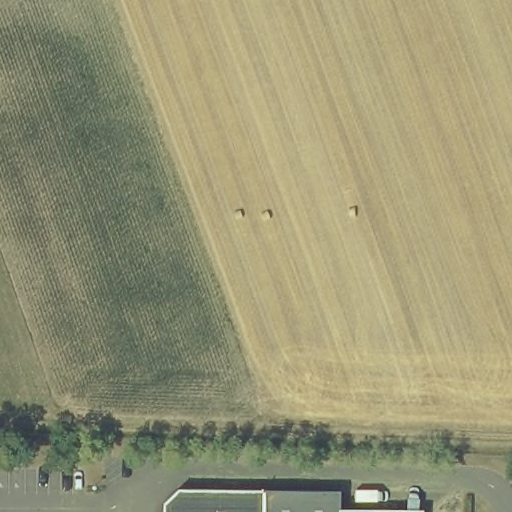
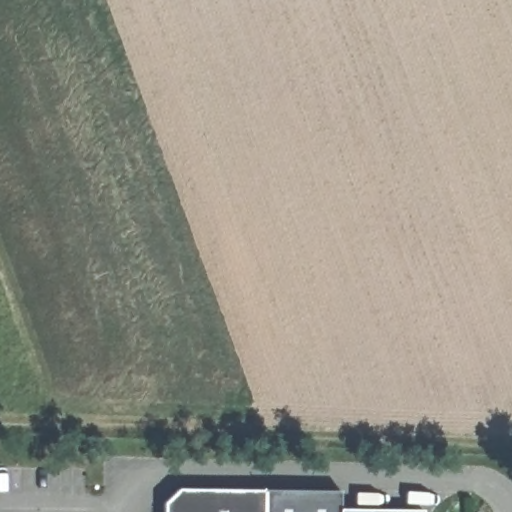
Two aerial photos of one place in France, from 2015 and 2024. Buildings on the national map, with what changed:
unchanged [(185,486),(264,487),(264,512),(164,512),(164,500),(178,486),(185,486)]
unchanged [(340,487),(340,506),(403,507),(423,507),(423,512),(264,512),(264,487),(340,487)]

